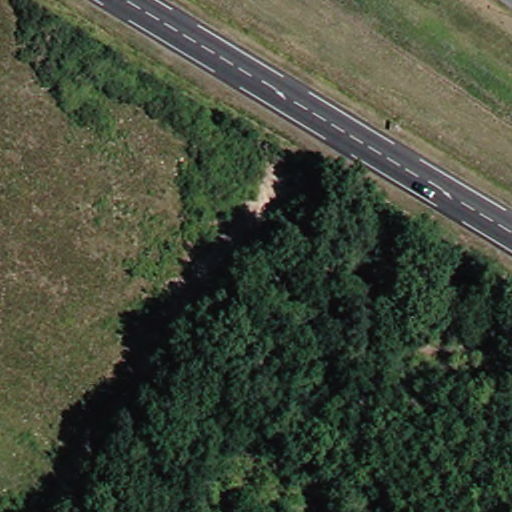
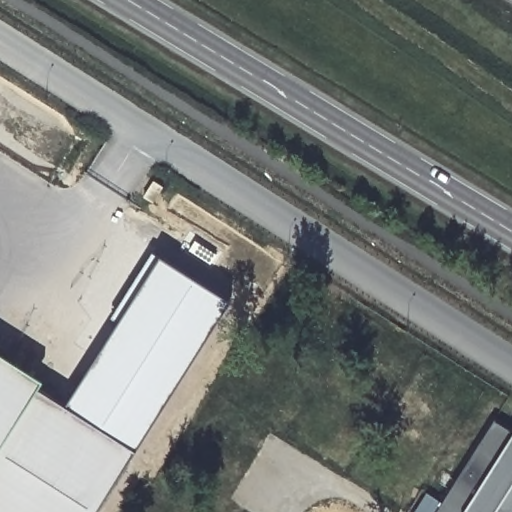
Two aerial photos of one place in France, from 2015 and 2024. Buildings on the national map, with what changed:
new [(66,404),(160,255),(231,300),(137,449),(66,404)]
new [(44,378),(39,386),(0,362),(0,351),(44,378)]
new [(97,512),(0,512),(0,362),(39,386),(137,449),(97,512)]
new [(512,431),(512,512),(438,512),(496,422),(495,419),(512,431)]

